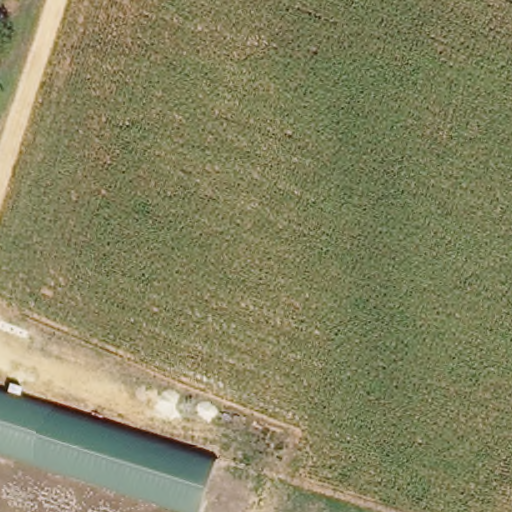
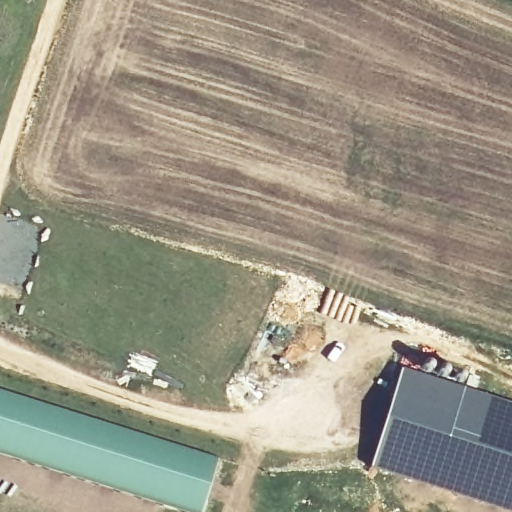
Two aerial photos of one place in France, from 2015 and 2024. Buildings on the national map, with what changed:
new [(424,367),(424,365),(428,362),(429,362),(463,372),(466,377),(466,381),(464,385),(461,388),(512,404),(512,512),(507,512),(371,470),(402,370),(421,375),(424,367)]
unchanged [(201,512),(187,512),(0,453),(0,391),(216,460),(201,512)]

